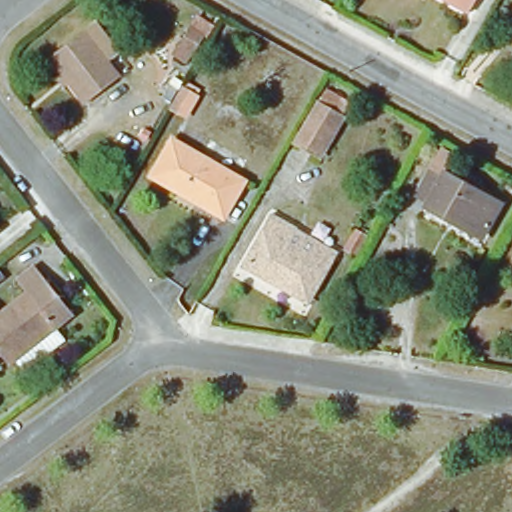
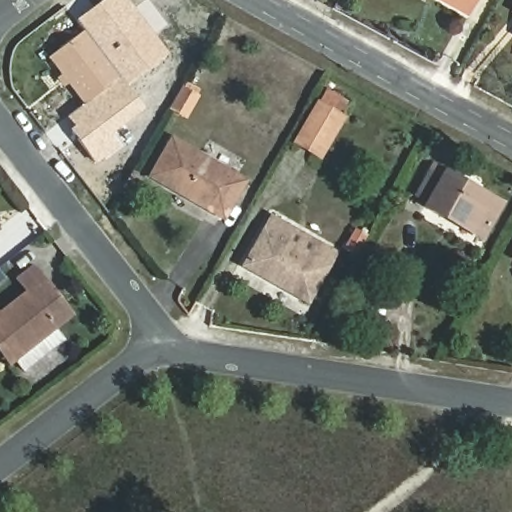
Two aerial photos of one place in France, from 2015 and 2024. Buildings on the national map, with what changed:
new [(75,20),(101,0),(126,0),(167,55),(124,86),(143,110),(110,135),(120,147),(95,165),(69,130),(73,127),(66,118),(88,104),(123,77),(88,31),(75,20)]
unchanged [(469,16),(439,0),(478,0),(469,16)]
unchanged [(198,16),(209,22),(202,35),(206,38),(187,67),(170,57),(198,16)]
unchanged [(123,77),(88,104),(51,59),(88,31),(123,77)]
unchanged [(183,85),(200,96),(185,120),(168,110),(183,85)]
unchanged [(294,146),(326,94),(352,110),(322,161),(294,146)]
unchanged [(247,181),(227,220),(153,177),(173,140),(247,181)]
unchanged [(448,222),(426,209),(427,206),(416,200),(434,164),(446,170),(506,204),(491,232),(485,244),(448,222)]
unchanged [(245,268),(275,216),(301,231),(340,254),(331,270),(309,308),(245,268)]
unchanged [(0,355),(0,314),(27,292),(19,281),(36,269),(72,316),(16,359),(8,365),(0,355)]

